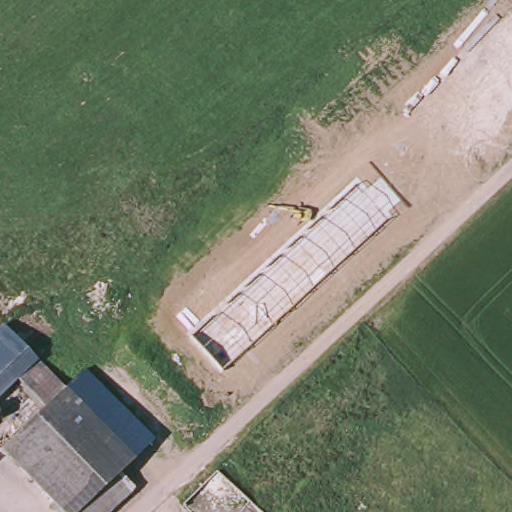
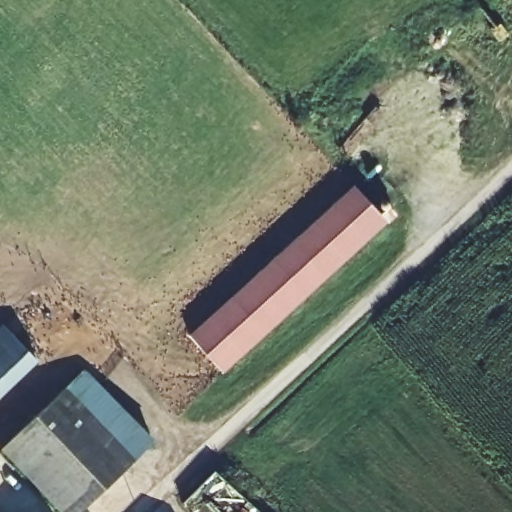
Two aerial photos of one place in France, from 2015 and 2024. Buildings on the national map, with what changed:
new [(357,176),(395,212),(224,367),(191,331),(357,176)]
unchanged [(0,391),(0,339),(10,330),(65,388),(45,407),(15,377),(0,391)]
unchanged [(81,372),(148,445),(123,468),(112,478),(45,407),(65,388),(81,372)]
unchanged [(101,512),(64,512),(3,448),(45,407),(112,478),(123,468),(135,481),(101,512)]

